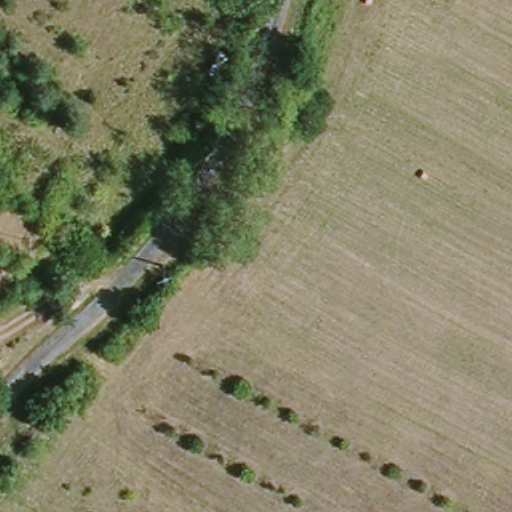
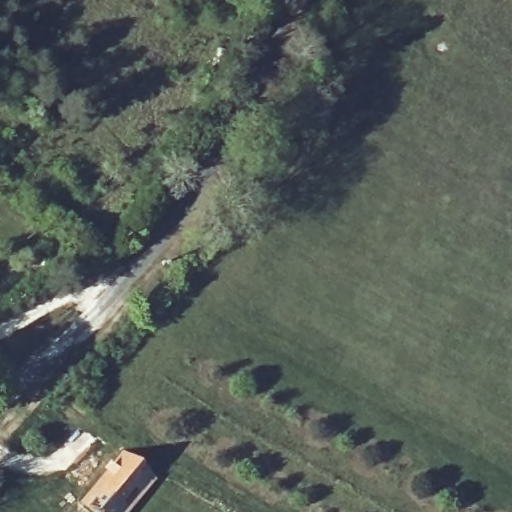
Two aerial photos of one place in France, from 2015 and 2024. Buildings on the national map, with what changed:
new [(123,450),(156,479),(127,512),(90,512),(78,502),(123,450)]

